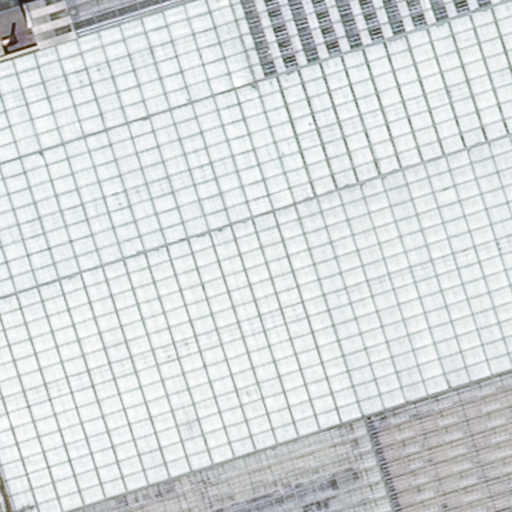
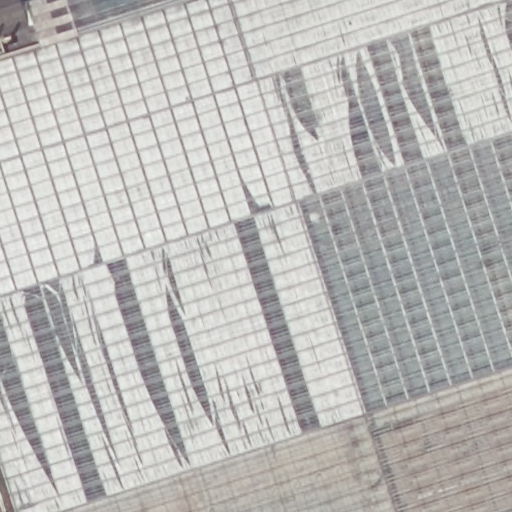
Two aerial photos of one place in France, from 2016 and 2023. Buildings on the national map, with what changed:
unchanged [(2,32),(0,33),(0,0),(17,0),(22,19),(29,18),(35,38),(6,46),(2,32)]
unchanged [(35,38),(29,18),(23,0),(231,0),(392,512),(17,512),(0,460),(0,55),(37,43),(35,38)]
unchanged [(231,0),(512,0),(512,512),(392,512),(231,0)]

